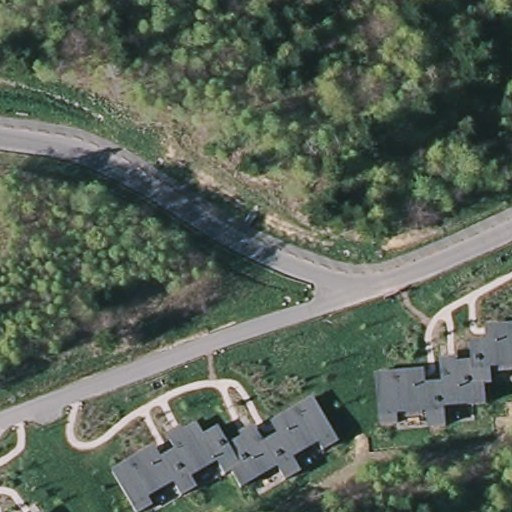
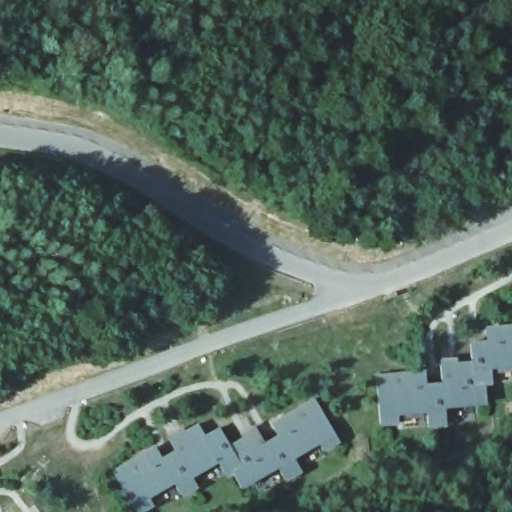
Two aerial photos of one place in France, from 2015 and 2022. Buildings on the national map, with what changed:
unchanged [(428,382),(444,381),(443,358),(470,358),(468,340),(485,339),(485,322),(512,322),(512,371),(485,371),(487,411),(377,419),(374,375),(426,370),(428,382)]
unchanged [(336,439),(240,490),(232,474),(225,478),(220,468),(133,510),(111,472),(158,445),(163,455),(175,448),(168,435),(199,420),(207,436),(222,428),(230,447),(243,442),(241,436),(257,425),(266,442),(278,435),(271,422),(313,401),(336,439)]

